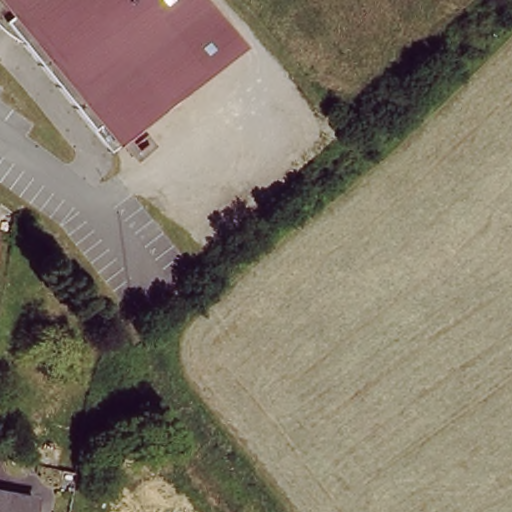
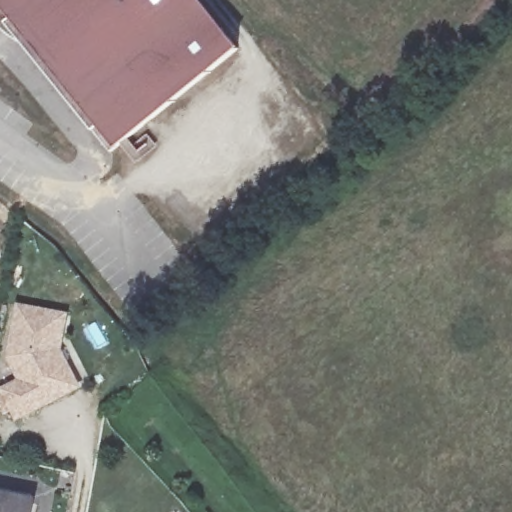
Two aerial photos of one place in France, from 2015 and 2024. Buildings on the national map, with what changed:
unchanged [(246,52),(114,159),(20,43),(9,36),(0,28),(0,0),(205,0),(246,52)]
new [(81,388),(15,421),(0,391),(0,387),(18,379),(7,358),(17,304),(71,314),(64,351),(81,388)]
unchanged [(30,512),(0,512),(0,488),(34,494),(30,512)]

